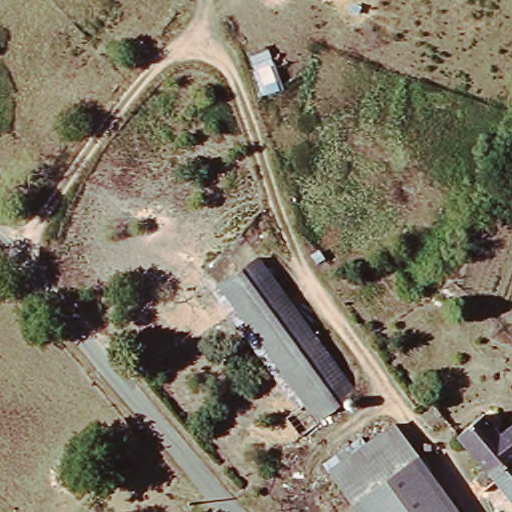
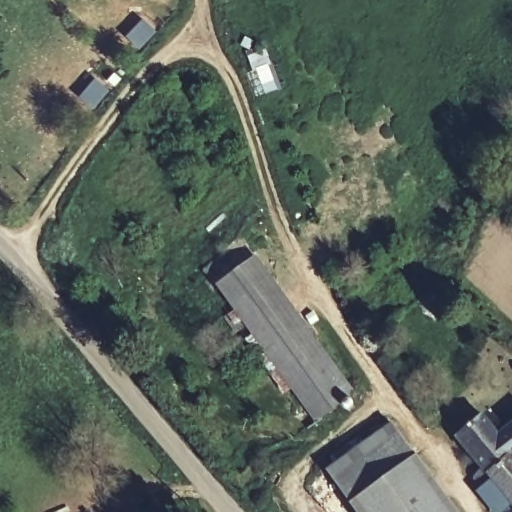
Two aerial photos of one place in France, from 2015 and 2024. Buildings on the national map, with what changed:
unchanged [(216,285),(253,260),(354,395),(314,422),(216,285)]
unchanged [(484,476),(474,488),(468,481),(478,469),(452,435),(482,414),(496,432),(512,420),(512,453),(509,455),(484,476)]
unchanged [(331,465),(392,422),(457,512),(365,512),(331,465)]
unchanged [(509,455),(512,459),(512,512),(484,476),(509,455)]

